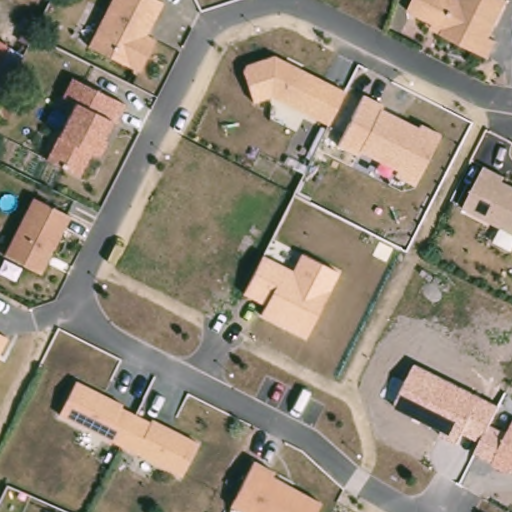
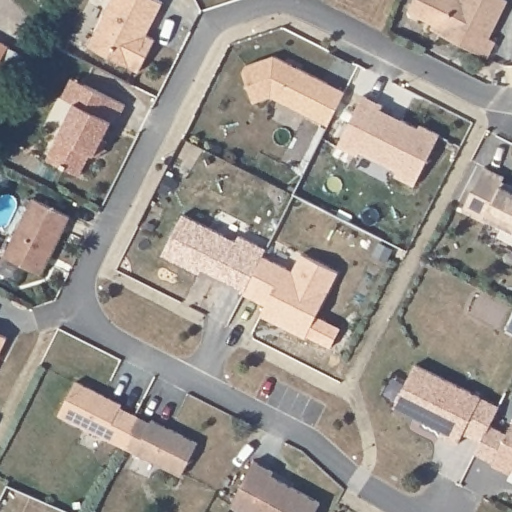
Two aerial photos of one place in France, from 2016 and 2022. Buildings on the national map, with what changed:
unchanged [(147,36),(155,41),(138,73),(87,50),(111,0),(158,0),(164,3),(147,36)]
unchanged [(490,38),(497,43),(487,60),(441,37),(445,30),(410,14),(417,0),(504,0),(507,2),(490,38)]
unchanged [(0,75),(0,42),(12,49),(0,75)]
unchanged [(329,126),(270,95),(256,102),(240,68),(275,54),(346,91),(329,126)]
unchanged [(124,105),(96,161),(90,157),(78,178),(45,161),(70,105),(60,100),(69,78),(124,105)]
unchanged [(383,107),(380,111),(418,128),(420,125),(440,134),(415,186),(394,177),(395,170),(361,154),(358,159),(337,149),(361,95),(383,107)]
unchanged [(461,210),(482,166),(505,177),(503,184),(512,188),(512,234),(461,210)]
unchanged [(70,218),(41,277),(4,259),(33,200),(70,218)]
new [(202,267),(200,272),(165,254),(185,214),(236,239),(239,233),(267,247),(263,256),(243,289),(202,267)]
unchanged [(336,271),(305,338),(260,315),(264,306),(240,294),(263,256),(292,270),(300,254),(336,271)]
unchanged [(0,334),(7,337),(0,353),(0,334)]
unchanged [(498,404),(490,424),(507,432),(492,465),(473,455),(478,440),(462,434),(457,443),(440,434),(441,430),(393,406),(414,364),(498,404)]
unchanged [(124,405),(120,411),(150,425),(152,420),(200,446),(182,480),(57,415),(74,380),(124,405)]
unchanged [(492,465),(512,422),(512,474),(492,465)]
unchanged [(276,474),(272,479),(318,504),(314,512),(239,512),(230,507),(251,462),(276,474)]

